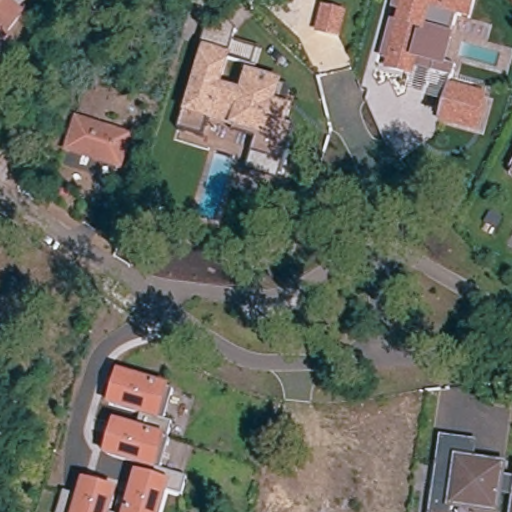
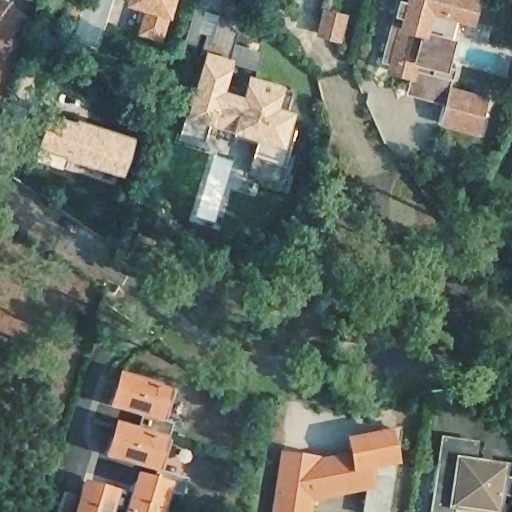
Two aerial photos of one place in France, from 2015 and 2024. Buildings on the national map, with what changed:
new [(161,40),(138,34),(145,9),(124,4),(125,0),(173,0),(169,15),(161,40)]
unchanged [(455,19),(450,35),(456,36),(448,64),(456,67),(453,78),(416,69),(412,77),(386,70),(386,62),(379,60),(394,0),(477,0),(471,24),(455,19)]
unchanged [(503,0),(512,0),(512,7),(503,0)]
unchanged [(314,33),(321,5),(348,12),(341,40),(314,33)]
unchanged [(5,48),(11,52),(0,67),(0,8),(23,26),(5,48)]
unchanged [(204,137),(181,130),(184,114),(202,48),(214,11),(234,31),(228,55),(232,56),(223,87),(242,93),(248,72),(283,83),(277,103),(294,109),(290,124),(295,125),(280,179),(247,169),(258,137),(209,122),(204,137)]
unchanged [(448,84),(489,95),(479,132),(438,122),(448,84)]
unchanged [(66,122),(121,139),(111,170),(56,152),(66,122)]
unchanged [(510,171),(512,167),(512,172),(510,171)]
unchanged [(121,235),(130,237),(126,250),(118,247),(121,235)]
unchanged [(172,387),(161,422),(161,420),(177,425),(161,471),(187,478),(182,495),(166,490),(160,512),(74,512),(84,479),(129,495),(136,467),(102,457),(114,421),(135,427),(140,416),(107,407),(119,371),(172,387)]
new [(400,425),(400,443),(389,512),(362,512),(363,490),(312,500),(310,512),(269,512),(279,450),(320,457),(360,450),(358,433),(400,425)]
unchanged [(478,442),(475,460),(505,463),(503,477),(512,478),(512,512),(510,512),(512,499),(500,497),(498,512),(456,507),(455,512),(429,512),(440,437),(478,442)]

